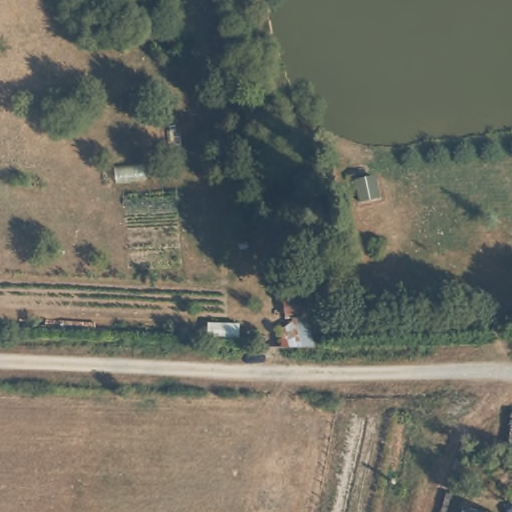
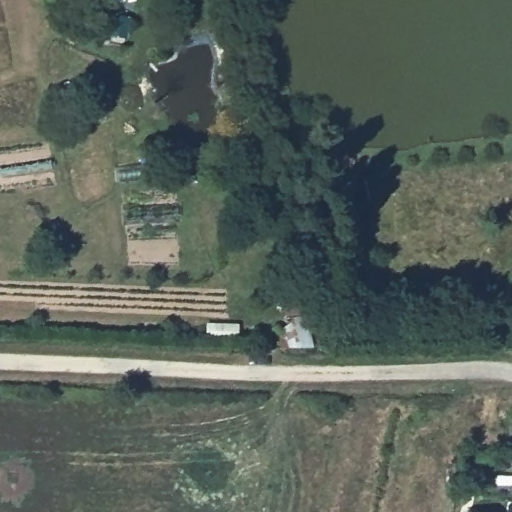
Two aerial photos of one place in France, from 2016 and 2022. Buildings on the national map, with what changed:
unchanged [(485,500),(512,508),(512,512),(482,512),(485,500)]

